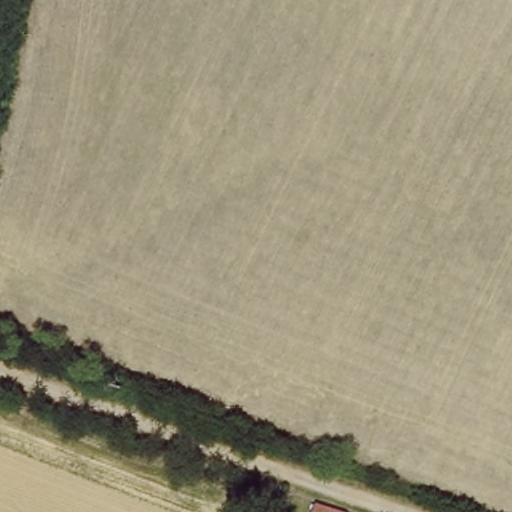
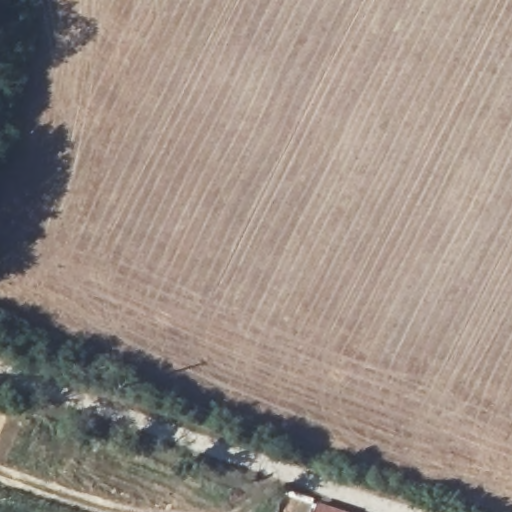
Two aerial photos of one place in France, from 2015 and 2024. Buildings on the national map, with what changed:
unchanged [(338,512),(316,512),(319,505),(338,512)]

